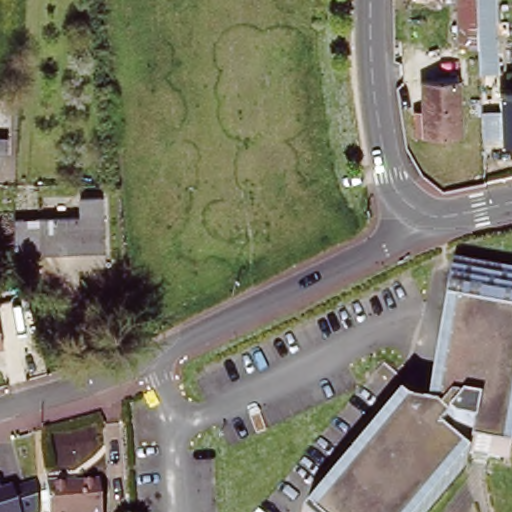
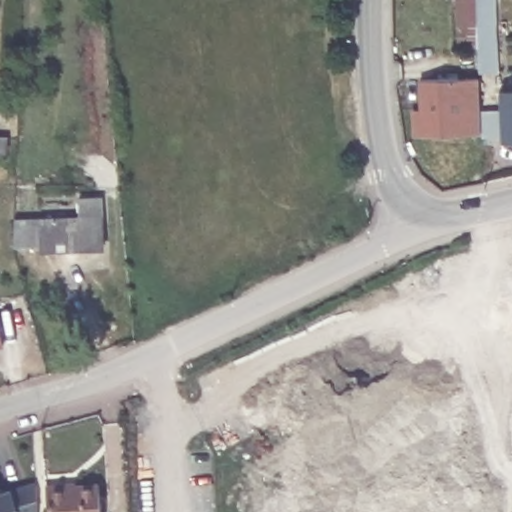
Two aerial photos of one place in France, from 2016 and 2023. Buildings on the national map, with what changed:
demolished [(483,45),(482,5),(497,4),(500,76),(477,76),(476,46),(483,45)]
unchanged [(417,114),(427,114),(426,85),(463,84),(465,139),(428,139),(418,139),(417,114)]
unchanged [(498,92),(512,92),(512,142),(501,143),(498,92)]
unchanged [(470,116),(470,100),(480,99),(480,115),(470,116)]
unchanged [(3,137),(2,164),(0,164),(0,137),(3,137)]
unchanged [(45,253),(45,251),(15,252),(16,225),(86,220),(86,203),(102,202),(104,250),(45,253)]
demolished [(398,417),(426,421),(453,270),(512,279),(512,334),(491,457),(463,453),(411,512),(314,512),(398,417)]
unchanged [(0,342),(0,334),(2,341),(0,342)]
unchanged [(13,491),(36,484),(45,512),(0,512),(0,495),(13,491)]
unchanged [(98,485),(100,512),(72,512),(69,486),(98,485)]
unchanged [(47,489),(69,486),(72,512),(49,512),(47,489)]

